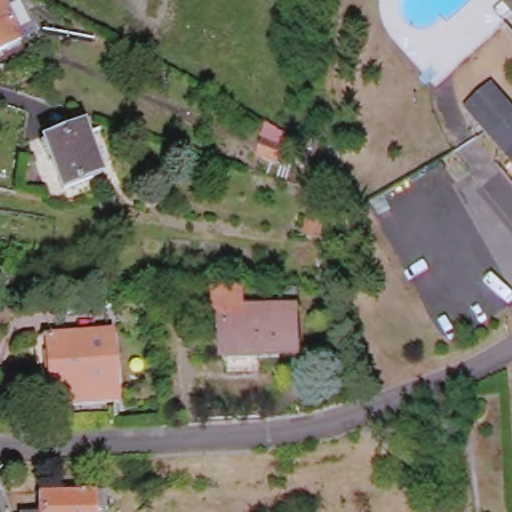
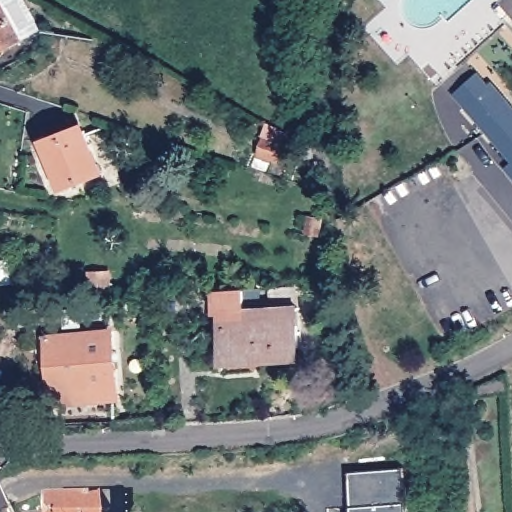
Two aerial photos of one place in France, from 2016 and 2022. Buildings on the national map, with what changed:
unchanged [(0,51),(0,0),(1,0),(21,40),(0,51)]
unchanged [(512,0),(512,12),(501,0),(512,0)]
unchanged [(495,84),(512,103),(512,158),(468,108),(495,84)]
unchanged [(45,140),(66,132),(68,138),(86,132),(102,174),(63,189),(45,140)]
unchanged [(266,139),(281,145),(275,162),(260,156),(266,139)]
unchanged [(260,290),(261,310),(271,309),(270,292),(298,291),(299,309),(294,309),(296,347),(261,349),(261,343),(249,345),(250,360),(227,361),(225,328),(218,328),(217,313),(216,293),(260,290)]
unchanged [(116,397),(96,399),(96,401),(54,405),(48,336),(51,336),(51,337),(93,333),(93,334),(110,333),(116,397)]
new [(346,477),(400,470),(406,512),(351,512),(346,477)]
unchanged [(98,493),(99,512),(46,512),(46,494),(98,493)]

